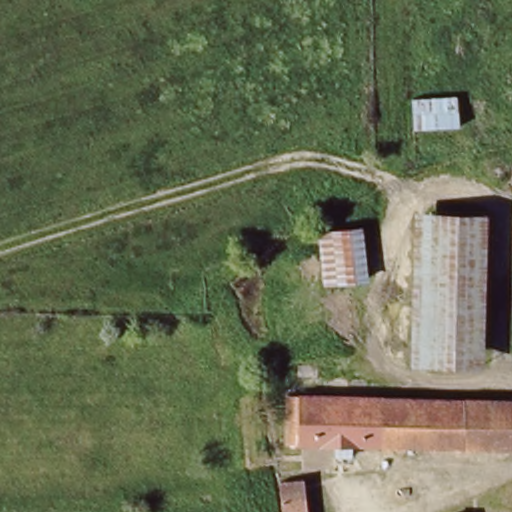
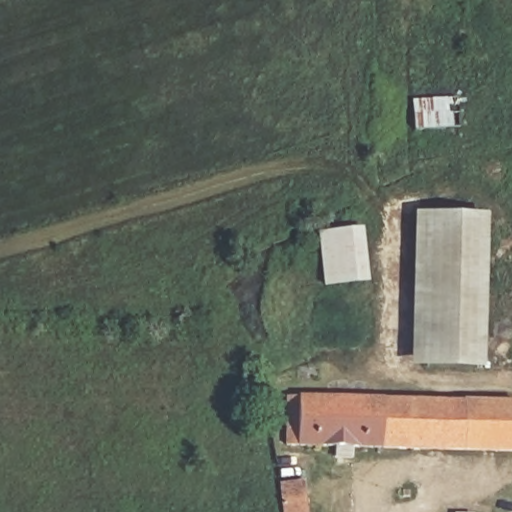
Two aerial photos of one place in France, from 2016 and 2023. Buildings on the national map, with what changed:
unchanged [(424,374),(420,219),(482,217),(486,372),(424,374)]
unchanged [(324,286),(322,235),(369,234),(370,285),(324,286)]
unchanged [(293,403),(512,408),(512,454),(292,449),(293,403)]
unchanged [(305,474),(304,512),(282,512),(284,473),(305,474)]
unchanged [(512,496),(512,512),(511,512),(512,496)]

